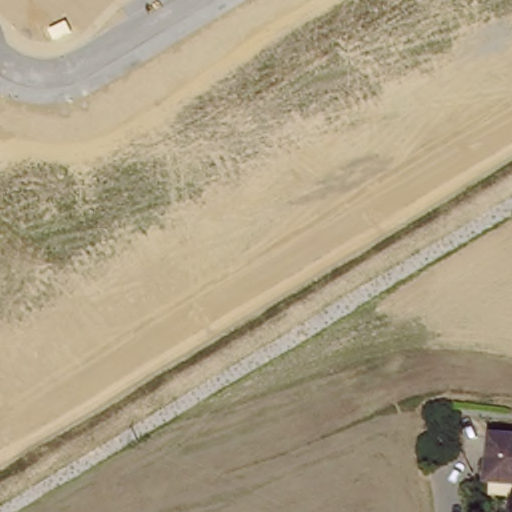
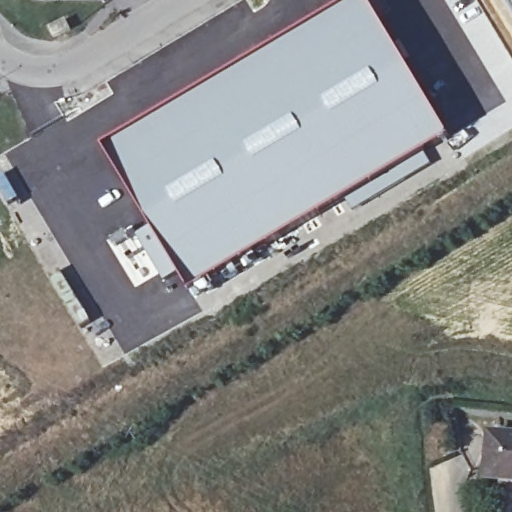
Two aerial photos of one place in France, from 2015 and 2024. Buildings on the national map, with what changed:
new [(137,236),(149,228),(104,149),(353,0),(369,0),(451,136),(425,152),(347,200),(219,276),(190,292),(178,274),(166,283),(137,236)]
new [(505,0),(512,0),(512,12),(505,0)]
new [(425,152),(431,163),(353,210),(347,200),(425,152)]
unchanged [(487,485),(492,440),(512,442),(512,488),(487,485)]

